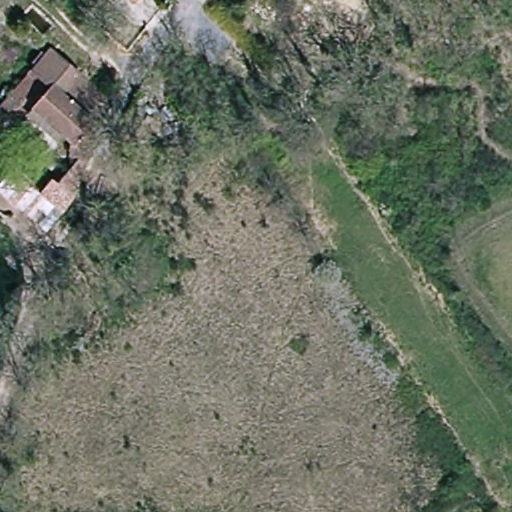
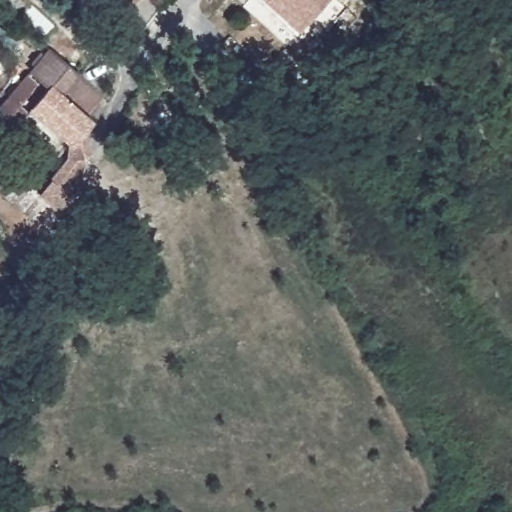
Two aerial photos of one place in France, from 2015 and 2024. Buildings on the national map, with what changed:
new [(263,0),(324,0),(298,30),(263,0)]
unchanged [(40,66),(57,45),(108,90),(90,110),(40,66)]
unchanged [(52,115),(39,130),(16,109),(7,101),(40,66),(90,110),(96,116),(77,137),(52,115)]
unchanged [(67,180),(75,162),(88,166),(81,186),(67,180)]

